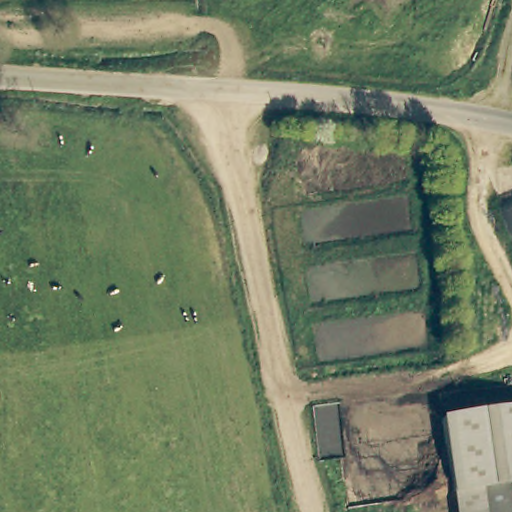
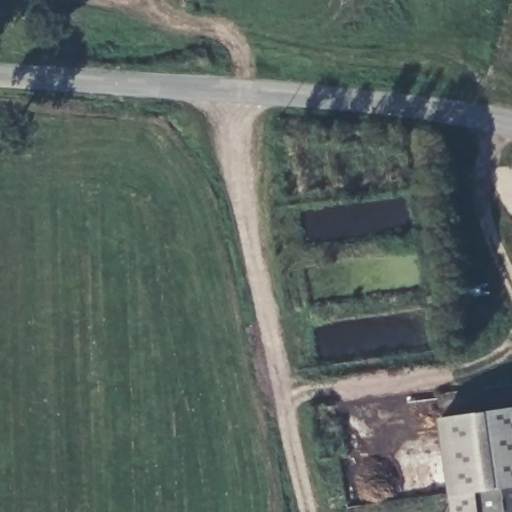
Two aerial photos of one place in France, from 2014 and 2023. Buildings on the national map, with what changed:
unchanged [(480,512),(452,512),(440,417),(512,409),(512,485),(477,489),(480,512)]
unchanged [(512,485),(512,512),(480,512),(477,489),(512,485)]

